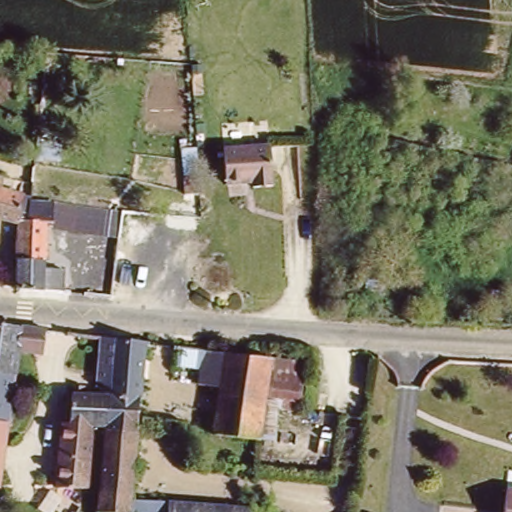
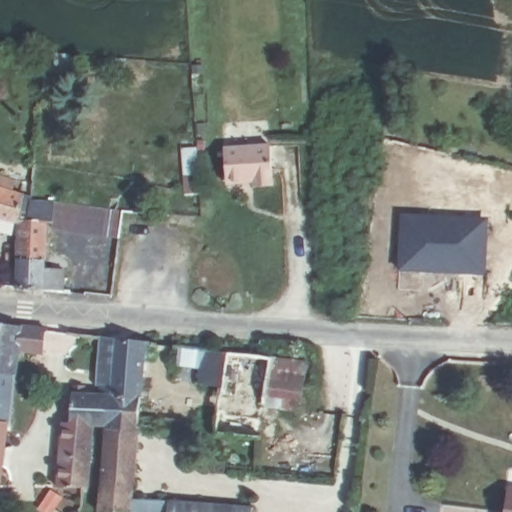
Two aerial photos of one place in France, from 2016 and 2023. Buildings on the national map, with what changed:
unchanged [(31,136),(58,139),(59,164),(30,158),(31,136)]
unchanged [(276,187),(253,188),(253,182),(237,182),(226,182),(224,147),(236,146),(272,142),(276,187)]
unchanged [(186,191),(184,150),(197,149),(200,192),(186,191)]
unchanged [(14,226),(0,221),(0,174),(5,176),(1,188),(31,195),(30,202),(52,205),(118,211),(118,213),(115,237),(48,230),(49,225),(43,225),(42,229),(42,256),(41,267),(60,270),(59,295),(13,291),(12,255),(14,226)]
new [(398,268),(401,214),(426,215),(426,219),(485,222),(483,273),(458,272),(423,270),(398,268)]
unchanged [(28,320),(55,326),(52,349),(24,347),(19,387),(0,385),(0,318),(28,320)]
unchanged [(105,426),(109,393),(95,392),(95,382),(91,381),(97,337),(144,344),(136,423),(129,500),(248,510),(266,511),(265,512),(103,512),(97,512),(105,426)]
unchanged [(220,384),(196,381),(197,368),(173,366),(174,347),(185,348),(266,358),(303,363),(302,375),(297,409),(276,407),(271,441),(256,438),(213,432),(220,384)]
unchanged [(56,485),(63,418),(68,418),(72,380),(83,381),(83,392),(95,392),(109,393),(105,426),(92,425),(85,486),(56,485)]
unchanged [(0,414),(0,385),(19,387),(16,415),(0,414)]
unchanged [(0,484),(0,414),(16,415),(8,485),(0,484)]
unchanged [(512,490),(512,512),(505,512),(508,489),(512,490)]

